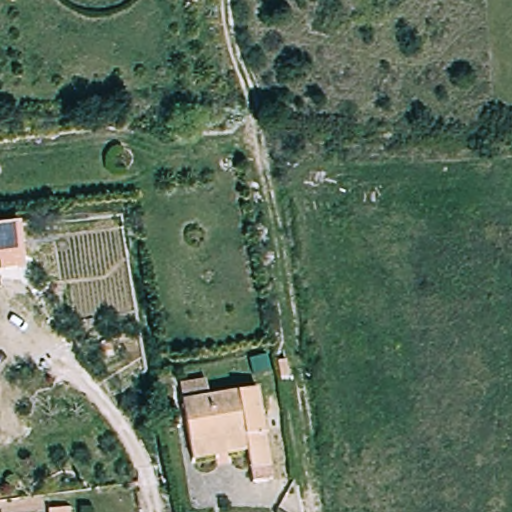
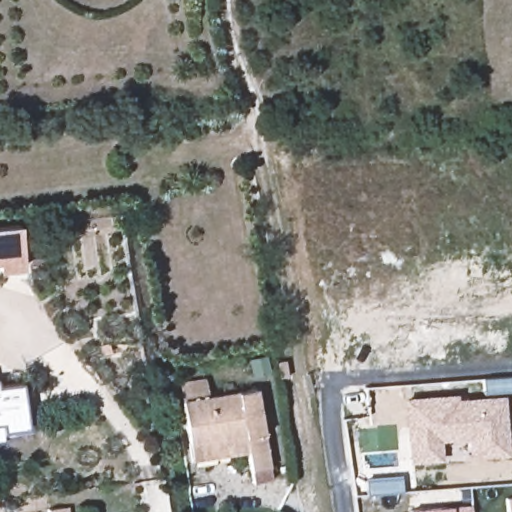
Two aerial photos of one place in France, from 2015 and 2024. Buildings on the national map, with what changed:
new [(18,224),(22,270),(0,273),(0,226),(18,224)]
demolished [(8,259),(0,260),(0,236),(6,235),(8,259)]
new [(22,383),(28,429),(3,432),(2,424),(0,425),(0,386),(22,383)]
unchanged [(186,443),(179,402),(255,389),(268,467),(250,470),(245,447),(223,451),(188,458),(186,443)]
new [(440,441),(442,461),(409,463),(404,399),(457,395),(457,400),(505,396),(509,454),(468,458),(467,440),(440,441)]
new [(512,498),(512,512),(507,512),(506,499),(512,498)]
new [(409,512),(409,511),(451,507),(471,506),(472,512),(409,512)]

